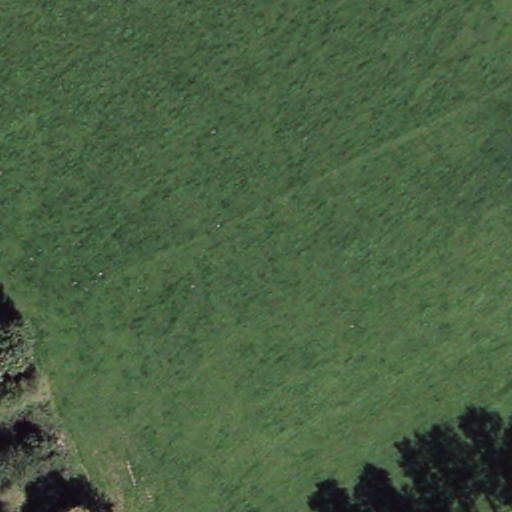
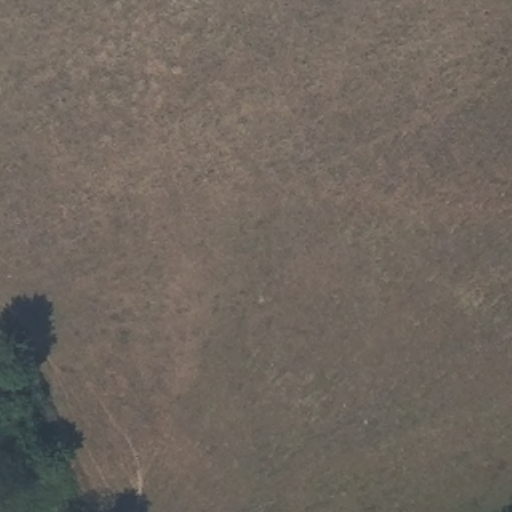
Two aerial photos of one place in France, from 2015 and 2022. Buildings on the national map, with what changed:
unchanged [(9,360),(19,381),(0,388),(0,363),(9,360)]

